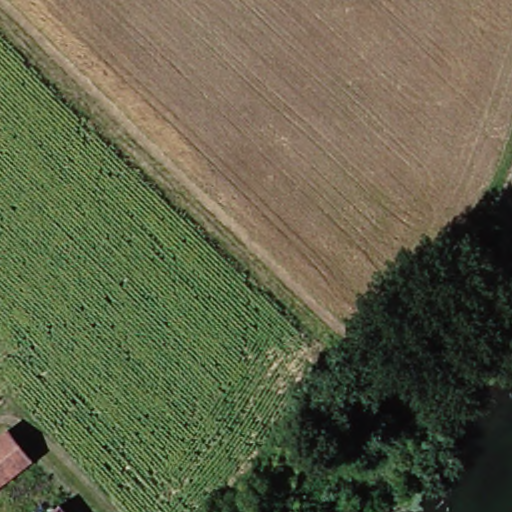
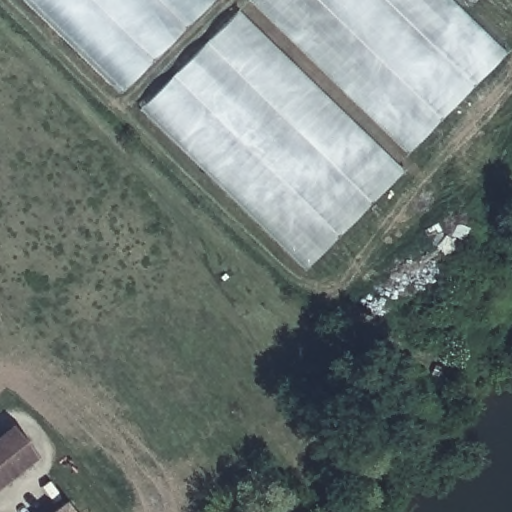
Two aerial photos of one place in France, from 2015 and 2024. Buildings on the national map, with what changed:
new [(25,0),(213,0),(120,90),(25,0)]
new [(447,0),(501,51),(410,150),(253,0),(447,0)]
new [(463,0),(473,0),(468,5),(463,0)]
new [(235,15),(399,174),(306,266),(146,105),(235,15)]
unchanged [(11,432),(35,460),(0,487),(0,441),(11,432)]
unchanged [(66,506),(70,512),(59,512),(66,506)]

